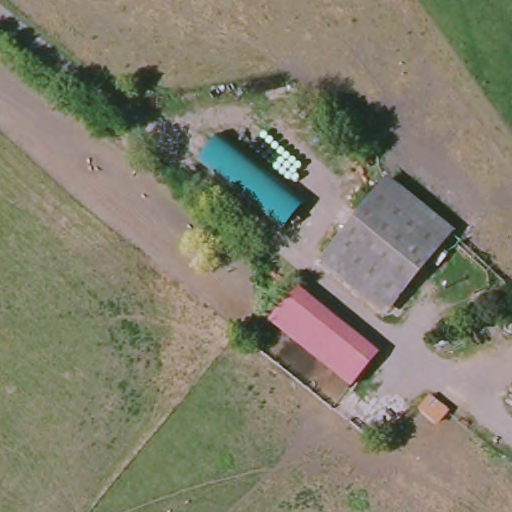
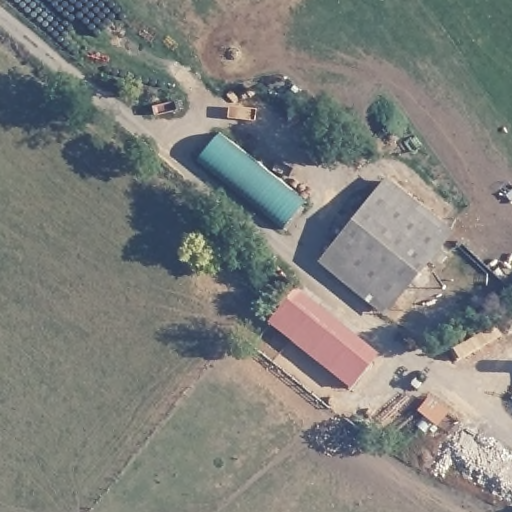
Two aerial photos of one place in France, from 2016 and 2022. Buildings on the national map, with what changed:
unchanged [(307,203),(285,230),(199,159),(221,133),(307,203)]
unchanged [(455,231),(389,312),(323,261),(391,179),(455,231)]
unchanged [(372,357),(353,381),(274,317),(294,293),(372,357)]

